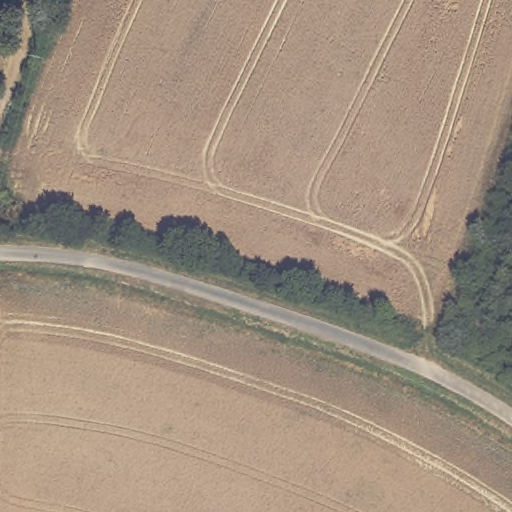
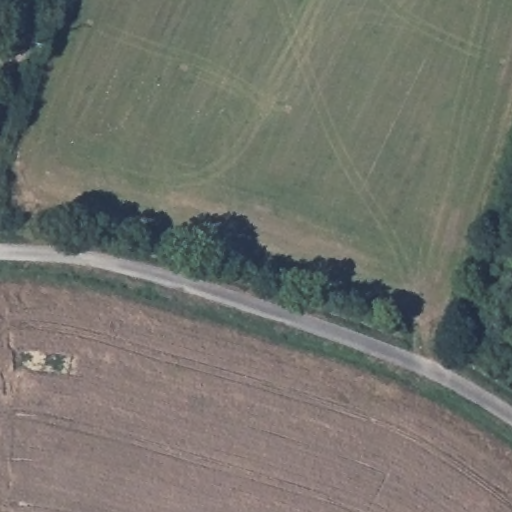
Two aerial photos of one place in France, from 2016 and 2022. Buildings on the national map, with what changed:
[]

